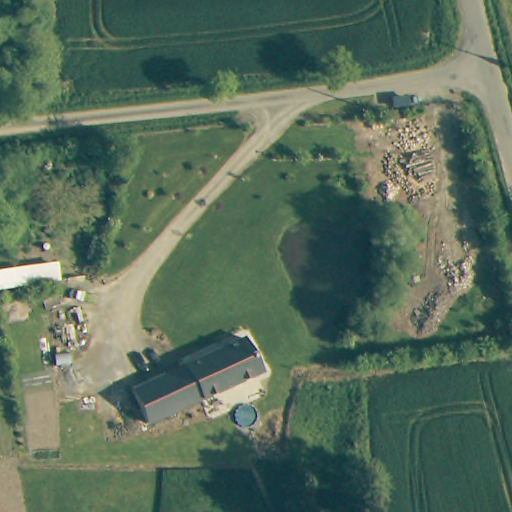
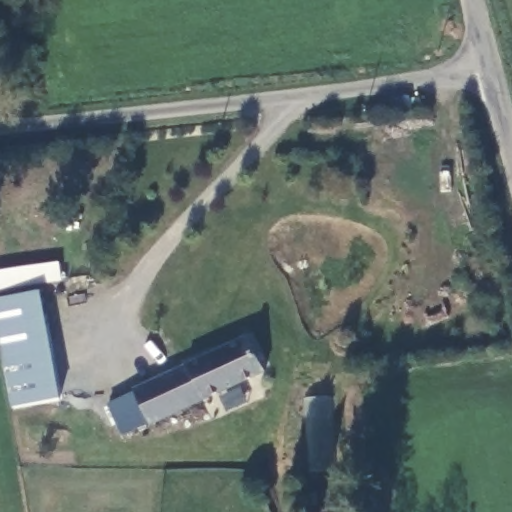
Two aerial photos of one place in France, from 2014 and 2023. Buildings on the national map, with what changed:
new [(40,291),(61,397),(13,408),(0,340),(0,298),(40,291)]
unchanged [(266,368),(156,422),(140,390),(250,336),(266,368)]

